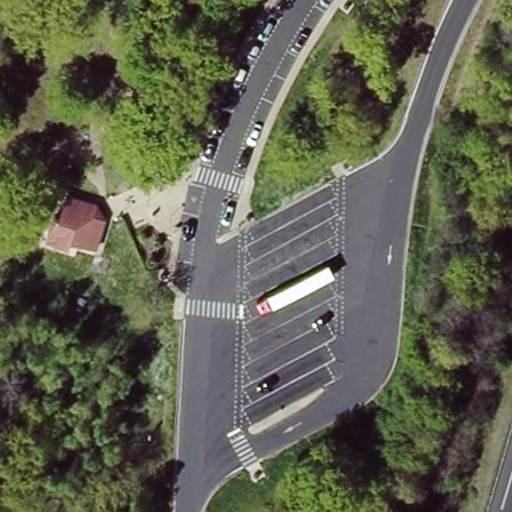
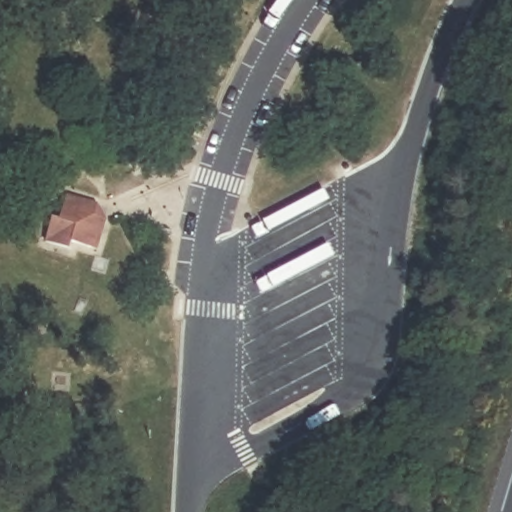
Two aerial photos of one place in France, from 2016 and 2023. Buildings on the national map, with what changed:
unchanged [(62,242),(68,225),(60,221),(67,197),(98,204),(97,214),(109,217),(97,252),(62,242)]

